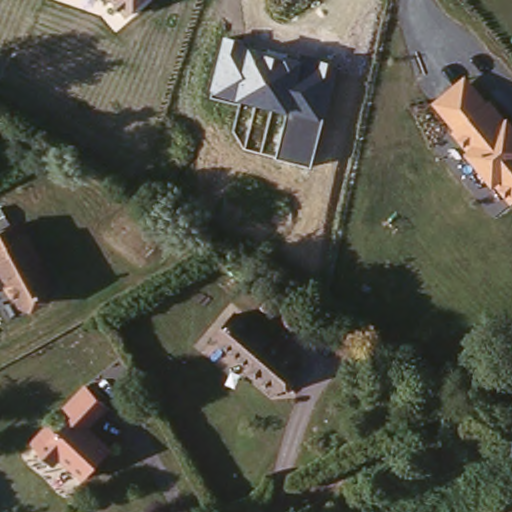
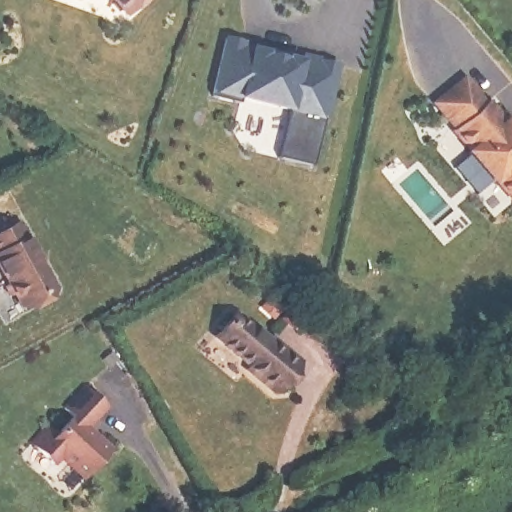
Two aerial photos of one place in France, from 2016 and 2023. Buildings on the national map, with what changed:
unchanged [(114,0),(147,0),(128,17),(114,0)]
unchanged [(253,41),(251,46),(301,59),(303,53),(340,64),(314,165),(279,156),(290,110),(212,92),(224,34),(253,41)]
unchanged [(489,101),(492,100),(512,124),(512,203),(451,132),(453,130),(431,101),(465,73),(489,101)]
unchanged [(51,286),(47,303),(32,310),(21,308),(0,269),(0,230),(15,222),(51,286)]
unchanged [(236,315),(268,339),(272,333),(300,355),(270,393),(242,371),(246,366),(216,343),(236,315)]
unchanged [(83,387),(105,405),(86,430),(106,450),(80,480),(56,461),(49,467),(28,448),(83,387)]

